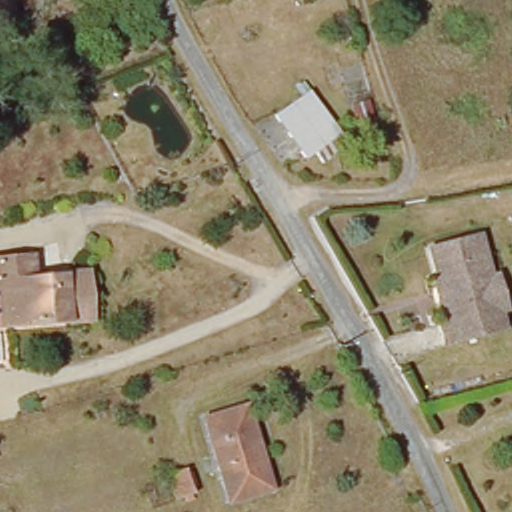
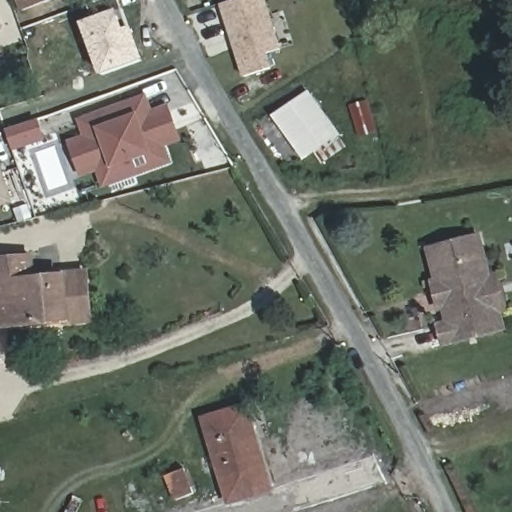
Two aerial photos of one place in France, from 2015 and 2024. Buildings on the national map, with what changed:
unchanged [(23,0),(59,0),(29,13),(23,0)]
new [(228,0),(267,0),(282,46),(268,50),(272,65),(246,74),(237,44),(233,33),(223,1),(228,0)]
new [(131,26),(144,62),(100,79),(80,23),(118,9),(125,29),(131,26)]
new [(0,31),(0,15),(5,29),(0,31)]
demolished [(36,51),(47,48),(54,64),(42,69),(36,51)]
unchanged [(309,164),(281,119),(322,95),(346,141),(309,164)]
new [(85,122),(141,100),(148,116),(166,110),(176,134),(157,141),(164,157),(106,179),(100,162),(81,169),(73,145),(91,139),(85,122)]
new [(40,119),(47,140),(15,151),(8,130),(40,119)]
new [(0,203),(0,167),(12,199),(0,203)]
unchanged [(506,332),(446,349),(442,329),(452,327),(430,251),(480,237),(492,279),(502,317),(506,332)]
unchanged [(34,263),(36,277),(85,268),(94,319),(26,333),(18,282),(10,282),(8,269),(34,263)]
unchanged [(0,319),(0,270),(8,269),(10,282),(18,282),(26,333),(3,334),(0,319)]
unchanged [(228,492),(209,443),(203,426),(248,411),(254,429),(270,479),(274,491),(231,503),(228,492)]
unchanged [(182,504),(168,482),(185,471),(198,498),(182,504)]

